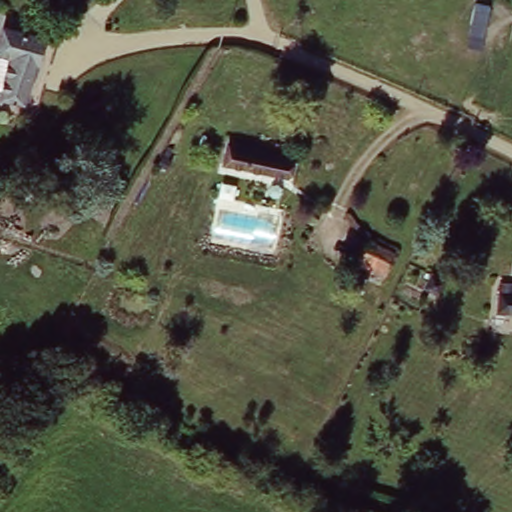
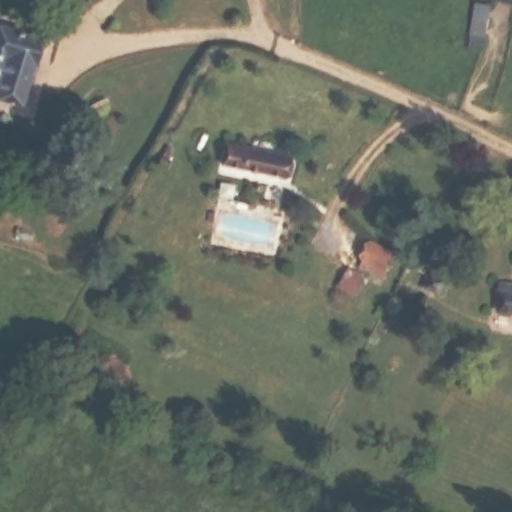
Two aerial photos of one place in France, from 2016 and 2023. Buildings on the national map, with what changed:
unchanged [(491,2),(484,32),(469,28),(475,0),(480,0),(491,2)]
unchanged [(49,36),(31,105),(6,98),(16,57),(1,51),(8,25),(49,36)]
unchanged [(292,156),(286,176),(224,162),(230,142),(292,156)]
unchanged [(395,247),(383,272),(359,260),(372,236),(395,247)]
unchanged [(445,279),(438,292),(425,287),(431,273),(445,279)]
unchanged [(512,312),(495,310),(497,283),(512,284),(512,312)]
unchanged [(405,318),(399,327),(390,321),(395,313),(405,318)]

